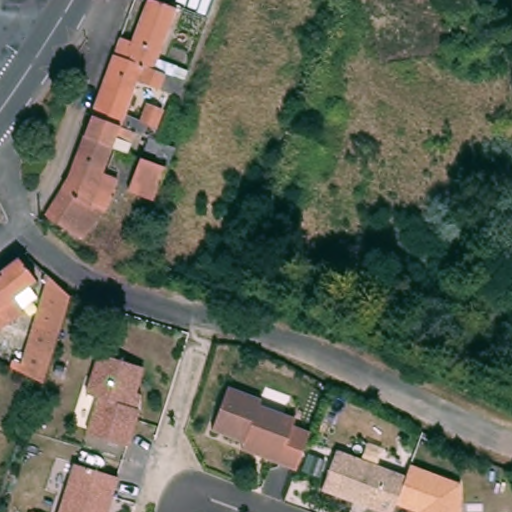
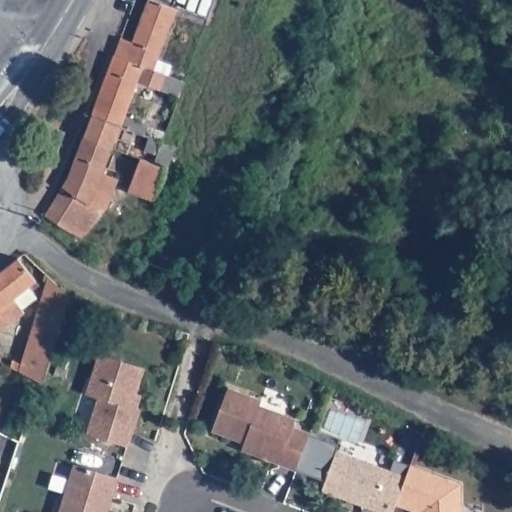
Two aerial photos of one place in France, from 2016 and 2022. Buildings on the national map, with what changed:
unchanged [(118,53),(123,37),(134,42),(148,0),(184,0),(159,69),(118,53)]
unchanged [(164,86),(140,76),(122,127),(95,117),(118,53),(159,69),(168,72),(164,86)]
unchanged [(122,127),(141,135),(132,157),(114,151),(86,141),(92,124),(95,117),(122,127)]
unchanged [(60,202),(72,184),(77,167),(86,141),(114,151),(107,171),(126,179),(112,215),(95,244),(52,219),(60,202)]
unchanged [(144,201),(132,196),(144,162),(156,167),(164,143),(179,148),(171,173),(160,207),(144,201)]
unchanged [(46,285),(39,291),(43,297),(28,308),(31,312),(3,329),(0,331),(0,275),(15,265),(24,257),(43,281),(46,285)]
unchanged [(74,297),(53,369),(49,382),(41,378),(17,366),(16,366),(18,358),(26,362),(52,275),(74,297)]
unchanged [(138,409),(140,410),(128,447),(88,433),(99,398),(87,395),(100,353),(144,367),(136,393),(142,395),(138,409)]
unchanged [(245,442),(213,430),(229,387),(262,399),(260,405),(296,418),(293,426),(311,432),(308,439),(297,470),(262,457),(242,449),(245,442)]
unchanged [(393,512),(382,512),(322,490),(337,450),(407,476),(406,478),(405,480),(396,504),(393,512)]
unchanged [(108,512),(60,512),(75,464),(119,477),(108,512)]
unchanged [(405,480),(406,478),(407,476),(407,475),(411,465),(461,483),(461,512),(418,512),(396,504),(405,480)]

